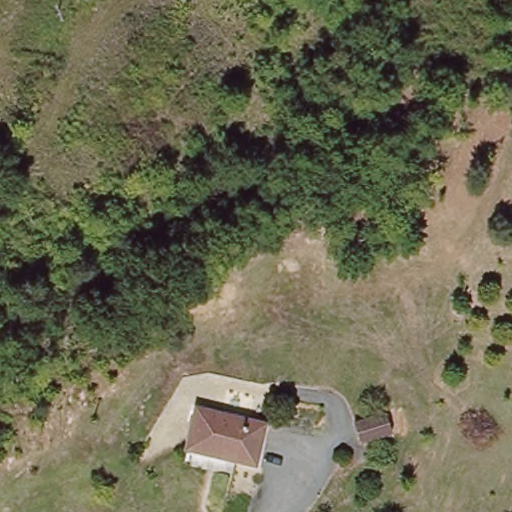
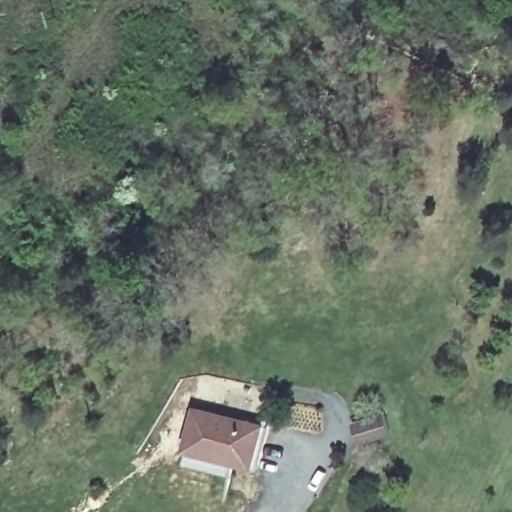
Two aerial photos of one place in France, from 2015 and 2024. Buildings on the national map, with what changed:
unchanged [(257,426),(248,464),(230,460),(225,477),(177,465),(190,410),(257,426)]
unchanged [(353,423),(384,413),(391,434),(359,443),(353,423)]

